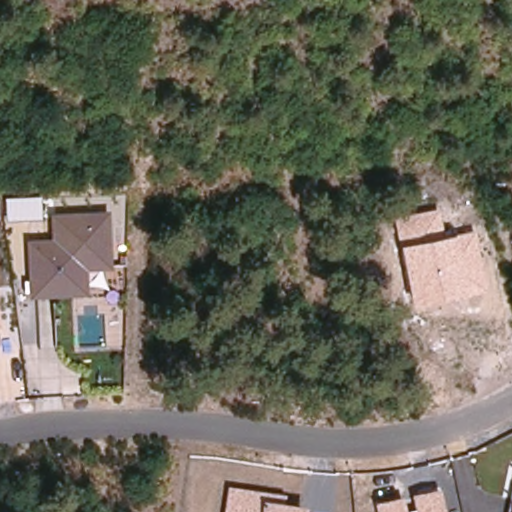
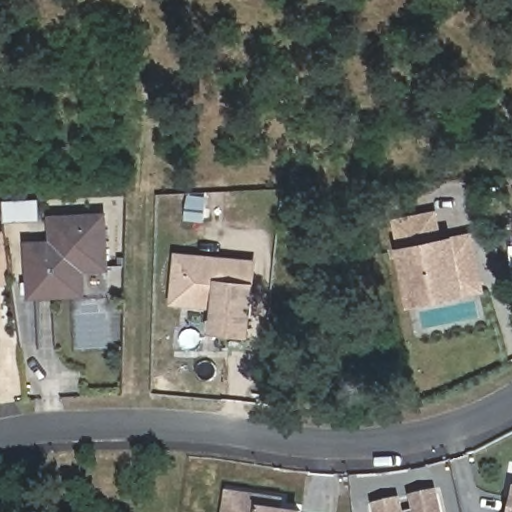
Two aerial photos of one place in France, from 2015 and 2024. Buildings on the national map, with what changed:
unchanged [(112,270),(86,271),(87,296),(28,299),(25,239),(53,239),(52,213),(110,210),(112,270)]
unchanged [(486,292),(471,296),(411,307),(399,247),(395,219),(438,210),(443,238),(456,235),(475,231),(486,292)]
new [(250,332),(219,330),(220,305),(177,301),(180,256),(257,262),(250,332)]
unchanged [(2,328),(0,328),(0,313),(2,328)]
unchanged [(306,507),(305,512),(223,512),(228,486),(285,495),(284,503),(306,507)]
unchanged [(376,512),(374,502),(439,488),(444,512),(376,512)]
unchanged [(512,512),(508,512),(512,491),(512,512)]

